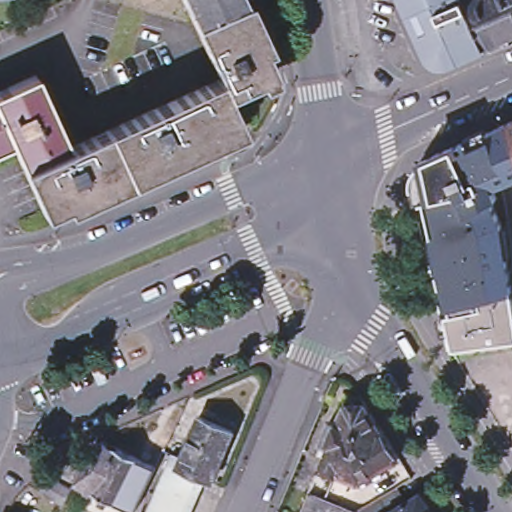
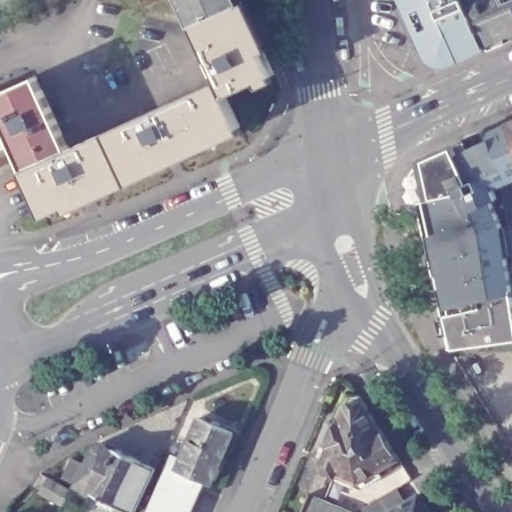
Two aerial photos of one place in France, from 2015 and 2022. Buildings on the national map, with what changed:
unchanged [(242,3),(195,24),(183,0),(240,0),(242,3)]
unchanged [(426,51),(402,0),(462,0),(482,45),(466,52),(433,67),(426,51)]
unchanged [(482,45),(462,0),(512,0),(512,32),(482,45)]
unchanged [(275,74),(227,96),(220,80),(195,24),(242,3),(275,74)]
unchanged [(30,66),(59,130),(67,149),(51,157),(22,169),(4,129),(0,122),(0,80),(30,66)]
unchanged [(51,157),(67,149),(220,80),(227,96),(241,127),(43,217),(38,204),(22,169),(51,157)]
unchanged [(4,129),(0,131),(0,122),(4,129)]
unchanged [(512,122),(512,132),(509,123),(512,122)]
unchanged [(493,189),(493,205),(499,224),(507,224),(512,247),(512,254),(505,256),(512,291),(512,340),(449,351),(443,315),(450,311),(423,198),(413,197),(410,186),(416,167),(422,156),(509,123),(512,132),(512,181),(493,189)]
unchanged [(384,433),(385,433),(403,464),(363,488),(341,479),(340,481),(324,474),(334,452),(326,448),(336,426),(342,428),(352,402),(366,402),(384,433)]
unchanged [(232,434),(210,484),(204,481),(176,469),(180,461),(199,419),(232,434)]
unchanged [(121,450),(142,460),(120,505),(81,486),(66,479),(75,459),(90,467),(100,446),(107,445),(119,450),(121,450)]
unchanged [(180,461),(176,469),(204,481),(191,512),(149,512),(172,457),(180,461)]
unchanged [(53,479),(78,491),(71,507),(46,494),(53,479)]
unchanged [(403,490),(411,503),(425,494),(435,512),(366,512),(388,499),(403,490)]
unchanged [(306,512),(313,495),(352,512),(306,512)]

